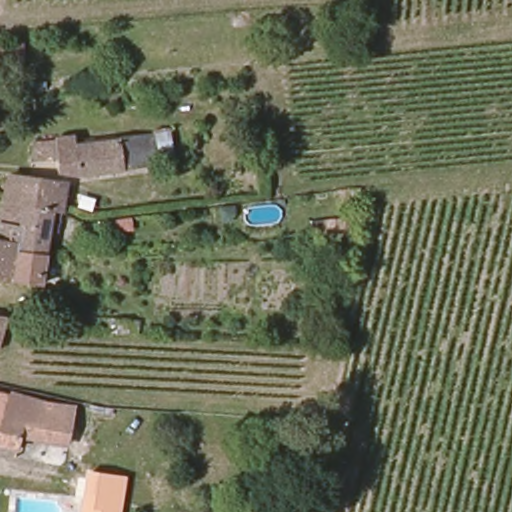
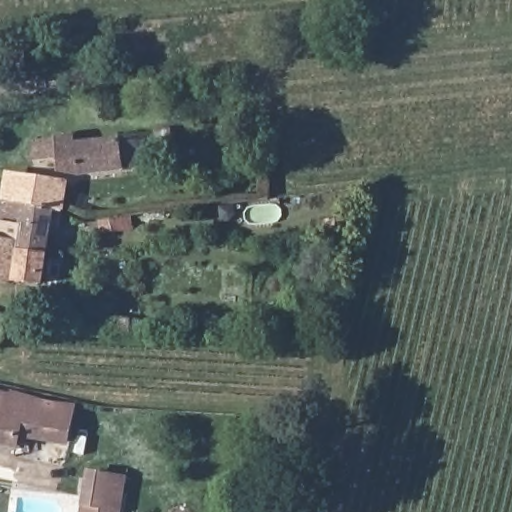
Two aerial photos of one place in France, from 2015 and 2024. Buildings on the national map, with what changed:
unchanged [(172,130),(171,143),(155,142),(156,130),(172,130)]
unchanged [(79,143),(121,140),(144,138),(144,164),(122,166),(57,170),(56,160),(28,160),(28,139),(78,134),(79,143)]
unchanged [(7,181),(14,181),(17,168),(31,171),(32,182),(64,187),(60,209),(5,197),(7,181)]
unchanged [(60,209),(54,248),(0,235),(5,197),(60,209)]
unchanged [(120,233),(102,230),(105,219),(122,222),(120,233)]
unchanged [(54,248),(49,279),(0,272),(0,234),(0,235),(54,248)]
unchanged [(55,312),(56,297),(72,300),(72,314),(55,312)]
unchanged [(0,311),(17,314),(14,331),(9,353),(0,352),(0,311)]
unchanged [(31,448),(0,442),(0,390),(70,405),(65,449),(60,449),(32,442),(31,448)]
unchanged [(86,469),(127,475),(122,512),(81,512),(81,506),(86,469)]

